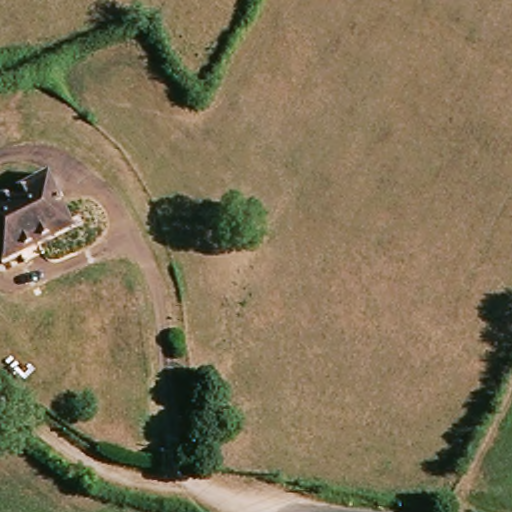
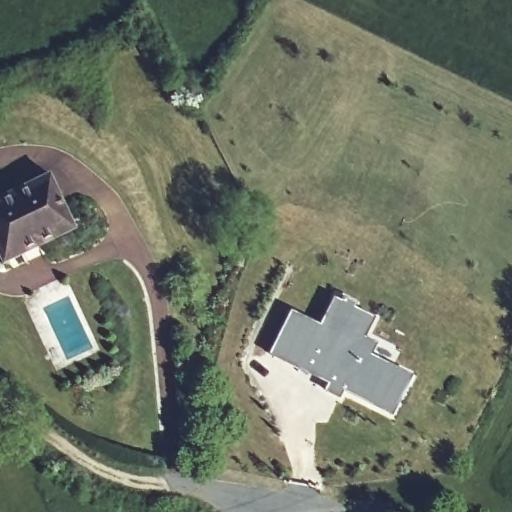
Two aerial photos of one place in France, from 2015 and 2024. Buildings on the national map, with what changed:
unchanged [(0,260),(0,197),(46,175),(72,230),(2,263),(0,260)]
new [(320,326),(333,298),(341,302),(344,297),(357,304),(353,309),(375,319),(365,338),(377,342),(370,356),(412,375),(392,416),(343,391),(339,400),(324,393),(328,384),(269,356),(291,311),(320,326)]

